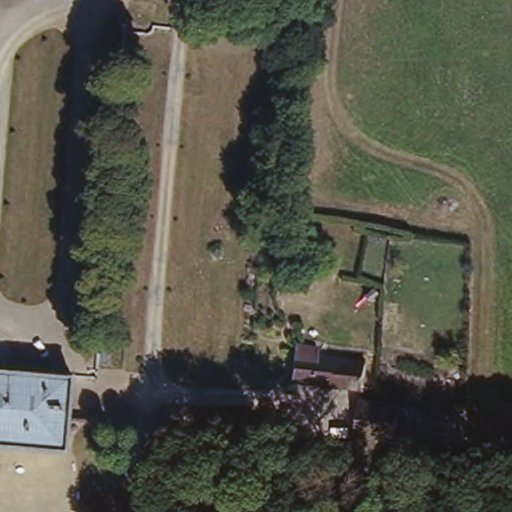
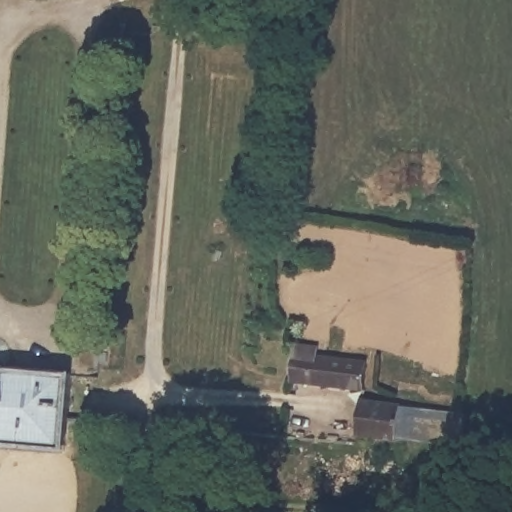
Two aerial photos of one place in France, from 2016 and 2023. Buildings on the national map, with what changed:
unchanged [(315,353),(363,357),(361,383),(295,379),(298,342),(315,344),(315,353)]
unchanged [(71,444),(0,440),(0,362),(74,367),(71,444)]
unchanged [(357,422),(359,391),(361,391),(400,394),(397,425),(357,422)]

